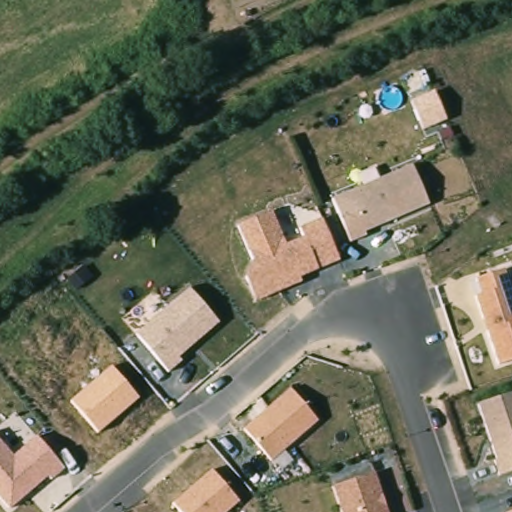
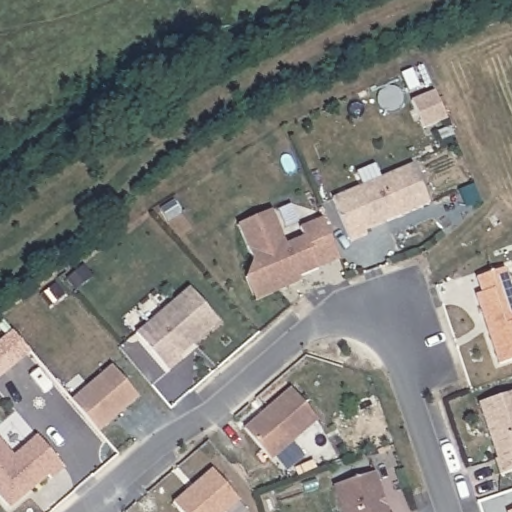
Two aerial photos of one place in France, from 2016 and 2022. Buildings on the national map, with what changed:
unchanged [(431,204),(368,231),(370,238),(353,244),(334,197),(414,165),(431,204)]
unchanged [(245,277),(252,259),(238,225),(272,211),(284,244),(302,237),(299,227),(320,219),(337,262),(299,277),(302,282),(256,301),(245,277)]
unchanged [(512,361),(501,365),(478,293),(485,292),(480,276),(508,268),(512,281),(512,361)]
unchanged [(138,332),(189,287),(220,323),(178,358),(180,362),(168,372),(138,332)]
new [(15,327),(33,348),(0,376),(0,340),(15,327)]
unchanged [(73,401),(111,366),(139,400),(98,435),(73,401)]
unchanged [(270,458),(245,427),(289,388),(317,418),(270,458)]
unchanged [(478,402),(512,392),(512,471),(503,473),(478,402)]
unchanged [(0,497),(0,439),(14,454),(36,436),(64,468),(51,478),(48,475),(9,507),(0,497)]
unchanged [(181,512),(174,502),(211,469),(238,499),(222,512),(181,512)]
unchanged [(376,472),(390,512),(342,512),(333,486),(376,472)]
unchanged [(512,512),(510,512),(512,511),(512,512)]

